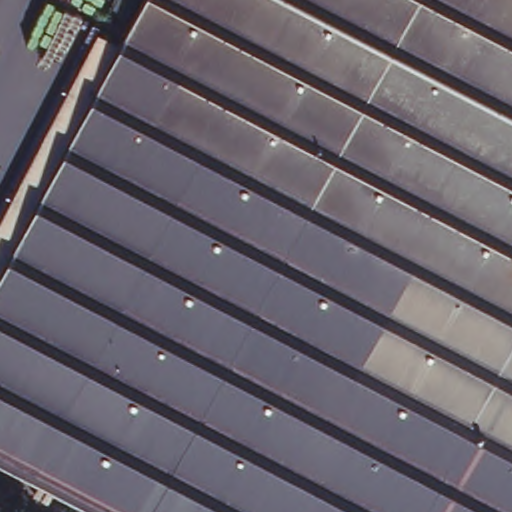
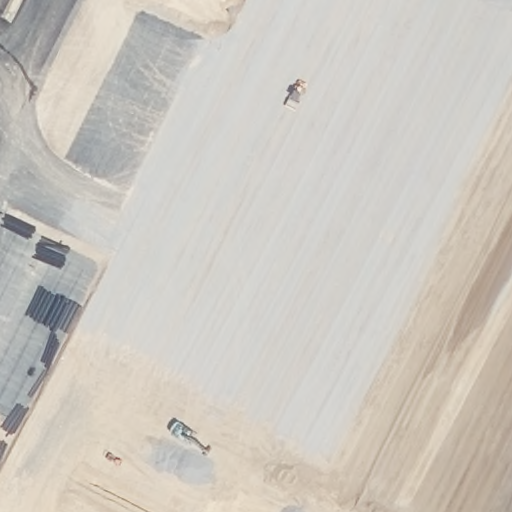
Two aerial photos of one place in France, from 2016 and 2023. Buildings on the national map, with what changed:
demolished [(103,512),(0,459),(0,275),(143,0),(512,0),(512,512),(103,512)]
new [(66,164),(141,16),(206,51),(233,0),(512,0),(512,512),(0,512),(0,461),(137,196),(66,164)]
demolished [(122,41),(0,275),(0,217),(95,29),(122,41)]

